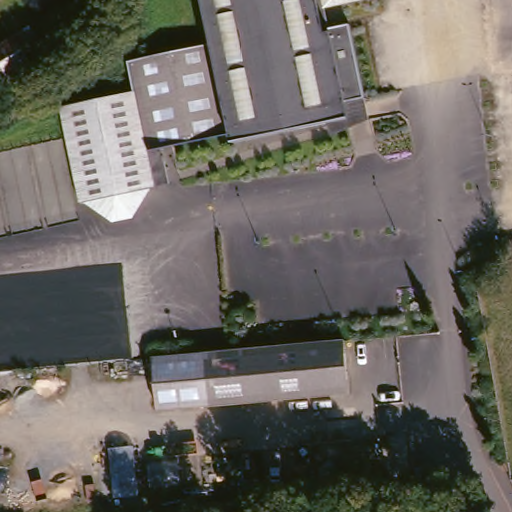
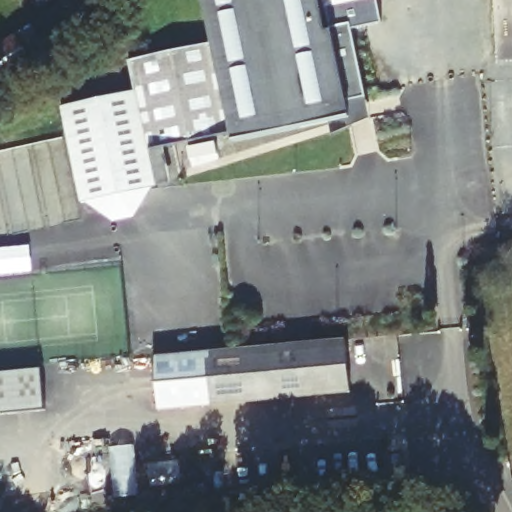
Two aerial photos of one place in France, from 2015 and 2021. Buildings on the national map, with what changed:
unchanged [(149,191),(126,220),(105,223),(81,204),(74,205),(56,107),(130,94),(124,64),(208,46),(199,0),(379,0),(322,12),(326,32),(346,27),(361,102),(342,107),(345,123),(228,147),(226,139),(157,152),(164,187),(149,191)]
unchanged [(5,37),(26,70),(0,87),(0,41),(5,37)]
unchanged [(171,358),(337,347),(342,401),(175,411),(171,358)]
new [(42,367),(45,407),(0,411),(0,371),(42,367)]

